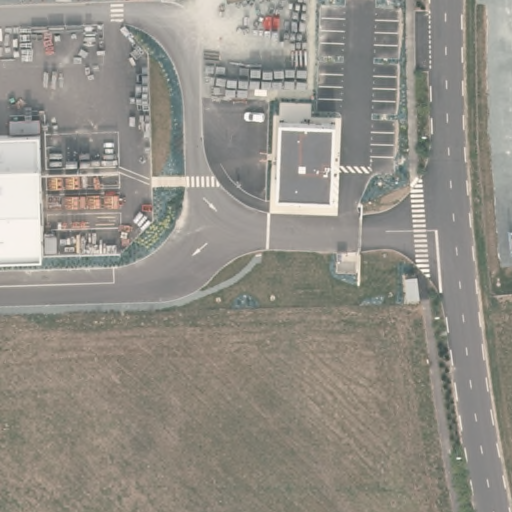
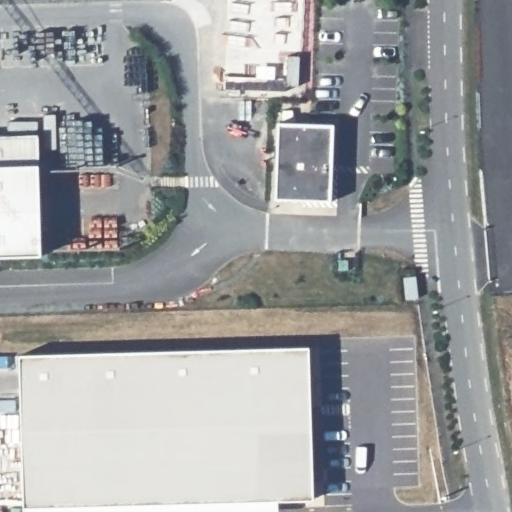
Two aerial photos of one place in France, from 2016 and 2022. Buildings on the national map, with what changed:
unchanged [(331,203),(274,200),(278,121),(334,122),(331,203)]
unchanged [(38,134),(42,253),(0,255),(0,136),(38,134)]
new [(307,347),(312,498),(275,500),(272,401),(22,408),(21,355),(307,347)]
new [(272,401),(275,500),(25,507),(22,408),(272,401)]

